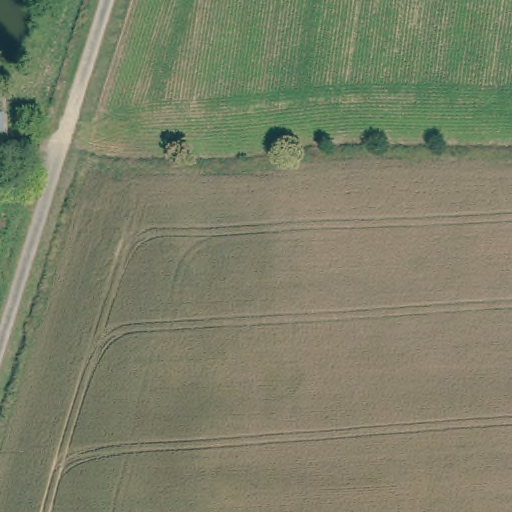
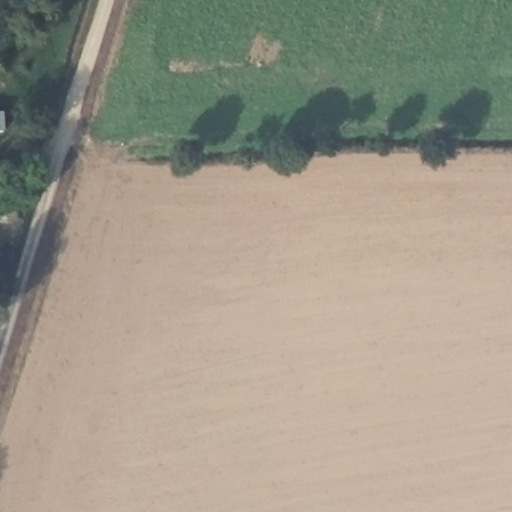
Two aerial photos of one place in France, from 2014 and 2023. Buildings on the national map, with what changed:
unchanged [(4,129),(0,129),(0,109),(3,109),(4,129)]

